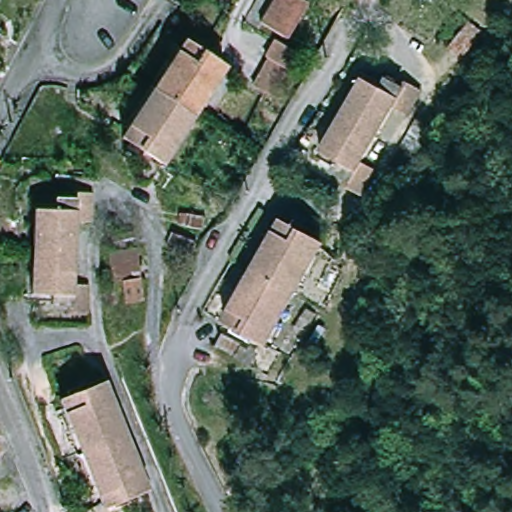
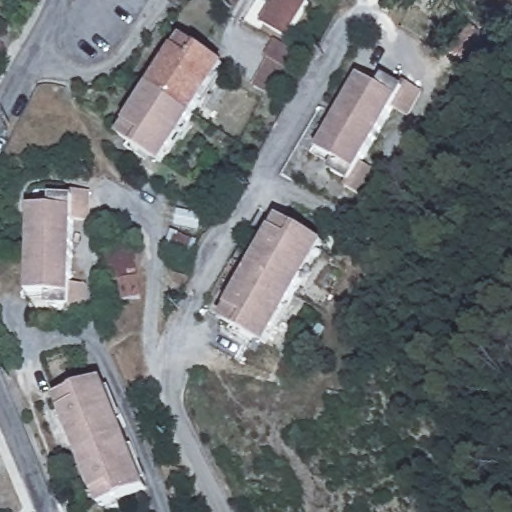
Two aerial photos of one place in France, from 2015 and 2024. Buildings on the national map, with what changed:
unchanged [(207,0),(230,0),(227,4),(222,10),(207,0)]
unchanged [(310,1),(289,39),(263,25),(276,0),(307,0),(310,1)]
unchanged [(482,31),(474,41),(475,42),(461,59),(448,48),(470,21),(482,31)]
unchanged [(195,114),(156,89),(188,42),(227,69),(196,115),(195,114)]
unchanged [(294,80),(276,105),(254,90),(271,64),(269,62),(279,47),(304,65),(294,80)]
unchanged [(360,121),(345,113),(365,79),(381,88),(387,78),(403,87),(406,80),(422,90),(407,115),(394,106),(379,132),(360,121)]
unchanged [(195,114),(196,115),(163,162),(124,135),(156,89),(195,114)]
unchanged [(360,121),(379,132),(362,162),(377,171),(362,195),(347,186),(350,181),(334,171),(340,161),(323,151),(345,113),(360,121)]
unchanged [(386,169),(400,144),(414,119),(437,132),(423,156),(409,182),(386,169)]
unchanged [(64,251),(32,251),(33,207),(53,207),(53,197),(72,197),(72,192),(93,192),(93,219),(75,219),(74,251),(64,251)]
unchanged [(369,210),(395,214),(385,234),(363,226),(369,210)]
unchanged [(255,270),(283,222),(323,245),(296,292),(255,270)]
unchanged [(110,236),(134,230),(137,242),(113,247),(110,236)]
unchanged [(128,302),(123,282),(116,283),(113,268),(110,255),(138,249),(140,262),(143,277),(140,278),(144,300),(128,302)]
unchanged [(64,251),(74,251),(74,283),(91,284),(91,286),(90,312),(72,312),(72,305),(52,305),(52,292),(31,292),(32,251),(64,251)]
unchanged [(296,292),(267,343),(226,320),(255,270),(296,292)]
unchanged [(85,455),(63,400),(108,382),(130,437),(85,455)]
unchanged [(1,436),(0,436),(0,435),(1,436)]
unchanged [(6,450),(0,453),(0,436),(3,441),(6,450)]
unchanged [(130,437),(151,490),(107,508),(85,455),(130,437)]

